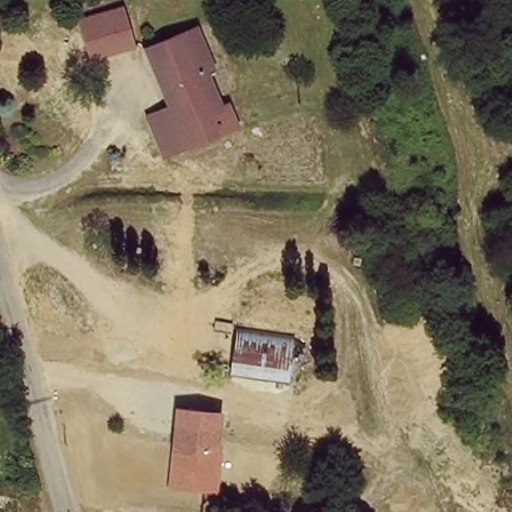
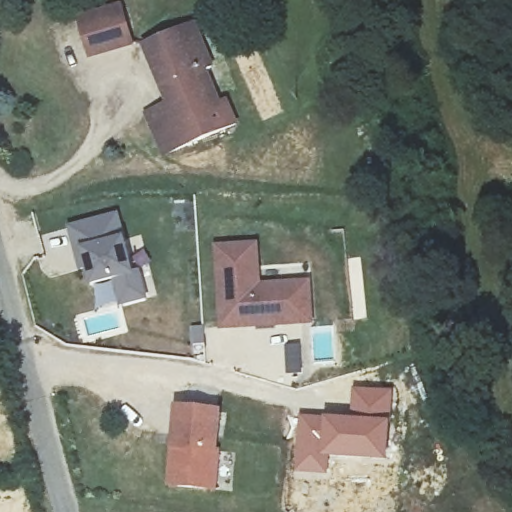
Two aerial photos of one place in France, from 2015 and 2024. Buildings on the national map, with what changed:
unchanged [(78,17),(125,5),(137,47),(91,59),(78,17)]
unchanged [(173,73),(160,77),(154,59),(147,41),(167,35),(200,23),(217,65),(210,67),(225,107),(212,111),(189,118),(173,73)]
unchanged [(173,73),(189,118),(212,111),(219,134),(167,151),(148,110),(169,103),(160,77),(173,73)]
new [(121,215),(127,240),(136,271),(143,270),(150,300),(122,310),(117,281),(91,288),(88,272),(81,273),(69,229),(121,215)]
new [(261,244),(263,283),(313,281),(316,326),(221,332),(216,247),(261,244)]
new [(298,413),(350,417),(354,387),(393,390),(387,464),(330,458),(328,475),(291,470),(298,413)]
unchanged [(224,411),(217,492),(168,488),(176,407),(224,411)]

